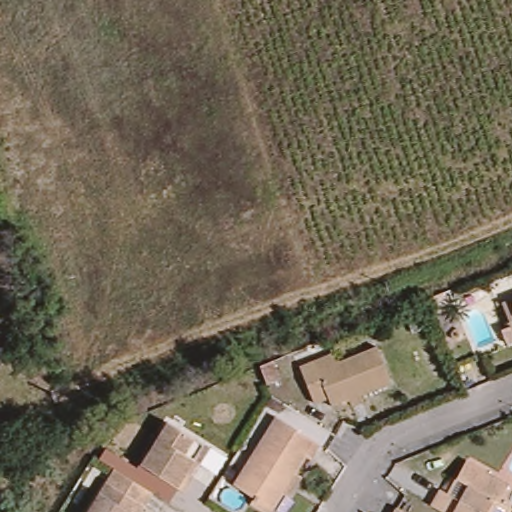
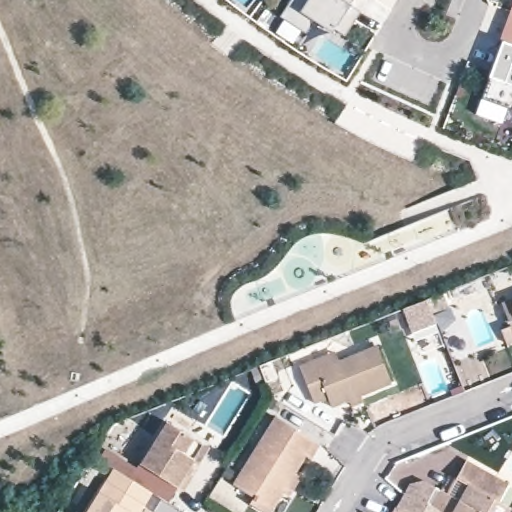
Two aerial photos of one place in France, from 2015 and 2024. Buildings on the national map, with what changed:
new [(355,20),(345,36),(316,17),(305,34),(279,17),(290,0),(353,0),(350,5),(354,7),(360,12),(355,20)]
new [(512,15),(512,45),(502,41),(512,15)]
new [(512,109),(482,99),(489,77),(502,41),(512,45),(512,108),(512,109)]
new [(421,301),(430,326),(405,336),(395,311),(421,301)]
unchanged [(505,306),(512,303),(512,323),(505,306)]
unchanged [(350,404),(347,397),(330,403),(327,395),(312,400),(298,365),(313,358),(335,350),(338,358),(375,344),(389,381),(358,392),(362,400),(350,404)]
unchanged [(266,362),(273,381),(260,386),(253,367),(266,362)]
unchanged [(287,492),(282,488),(271,506),(233,482),(275,415),(318,441),(309,455),(305,452),(295,469),(300,472),(287,492)]
unchanged [(192,477),(182,492),(140,465),(167,422),(203,445),(210,448),(200,465),(194,461),(186,473),(192,477)]
unchanged [(445,512),(433,505),(443,488),(462,500),(470,485),(457,477),(467,461),(510,486),(502,500),(508,504),(512,506),(512,509),(510,512),(445,512)]
unchanged [(90,512),(116,471),(155,495),(143,512),(90,512)]
unchanged [(404,512),(388,512),(392,505),(404,512)]

